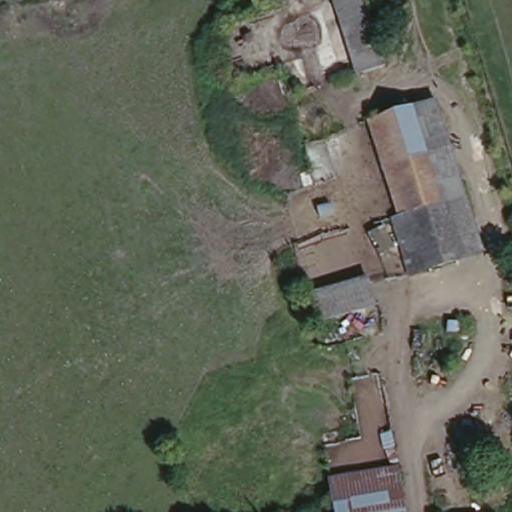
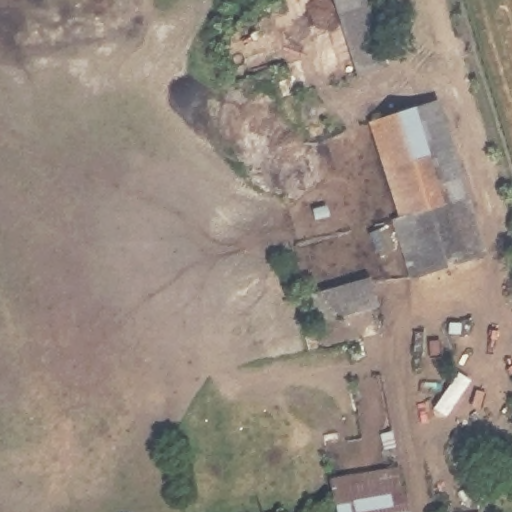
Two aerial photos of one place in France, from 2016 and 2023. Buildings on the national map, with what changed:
unchanged [(352,63),(333,0),(358,0),(375,56),(352,63)]
unchanged [(432,99),(476,256),(407,276),(392,220),(405,216),(375,116),(432,99)]
unchanged [(365,280),(370,300),(314,318),(308,297),(365,280)]
unchanged [(331,480),(398,467),(406,512),(338,512),(331,480)]
unchanged [(264,509),(278,506),(280,512),(265,512),(264,509)]

